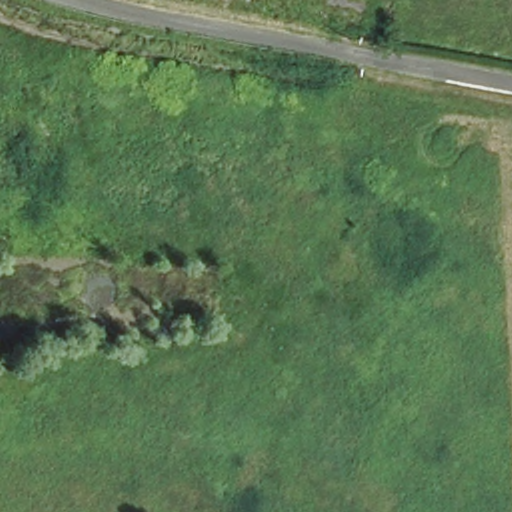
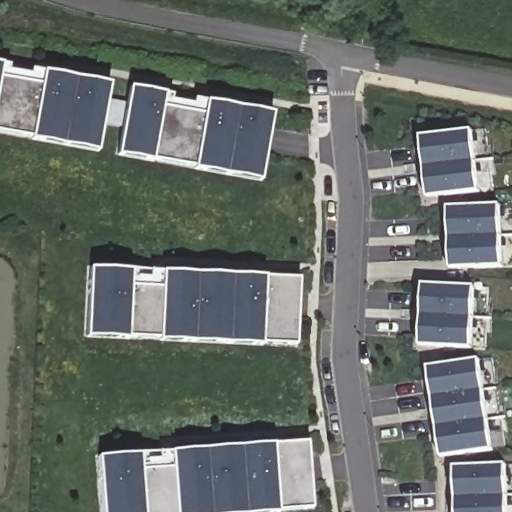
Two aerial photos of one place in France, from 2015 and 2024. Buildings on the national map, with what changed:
new [(6,71),(29,74),(30,69),(41,72),(72,77),(107,83),(95,149),(0,132),(0,64),(7,65),(6,71)]
new [(162,93),(169,94),(168,100),(191,104),(192,99),(204,101),(235,106),(270,113),(258,178),(115,153),(127,86),(162,93)]
new [(423,166),(422,157),(420,136),(472,130),(484,128),(491,190),(479,192),(435,197),(427,198),(425,186),(423,166)]
new [(448,237),(448,227),(447,206),(500,204),(512,204),(512,266),(502,267),(458,268),(449,268),(449,256),(448,237)]
new [(129,269),(160,271),(230,274),(261,276),(297,277),(294,345),(84,335),(87,268),(129,269)]
new [(420,335),(420,315),(421,305),(422,284),(474,286),(487,287),(484,349),(472,349),(427,347),(419,346),(420,335)]
new [(492,357),(504,448),(492,450),(479,359),(492,357)]
new [(439,446),(436,427),(435,418),(432,397),(431,388),(428,366),(479,359),(492,450),(449,456),(440,457),(439,446)]
new [(239,446),(269,444),(305,441),(310,508),(250,512),(100,512),(96,456),(137,453),(168,451),(239,446)]
new [(454,487),(454,465),(506,464),(507,512),(455,512),(455,497),(454,487)]
new [(507,512),(506,464),(512,464),(512,512),(507,512)]

